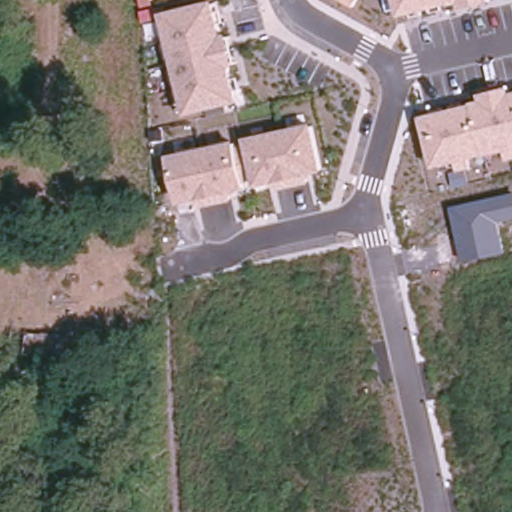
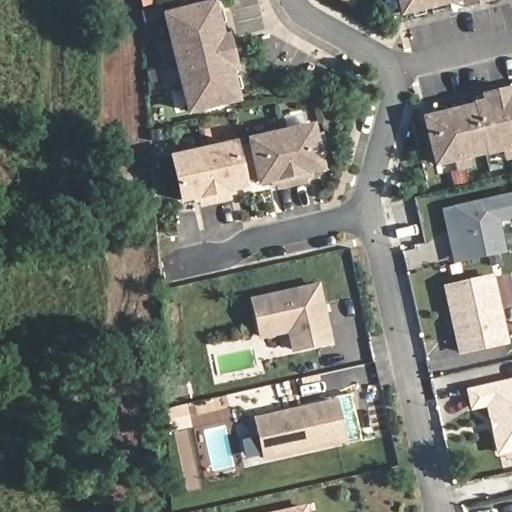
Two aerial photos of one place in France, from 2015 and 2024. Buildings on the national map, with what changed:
unchanged [(224,33),(232,31),(239,65),(231,67),(239,102),(184,116),(160,11),(207,0),(215,0),(224,33)]
unchanged [(495,1),(464,8),(463,2),(403,17),(399,0),(495,0),(495,1)]
unchanged [(509,162),(506,149),(474,157),(475,168),(467,171),(469,185),(454,188),(451,173),(459,171),(459,161),(434,167),(423,116),(482,101),(480,93),(512,85),(512,161),(509,162)]
unchanged [(328,169),(304,175),(306,183),(278,190),(277,181),(227,193),(229,199),(201,206),(199,199),(180,204),(169,152),(316,121),(328,169)]
unchanged [(499,223),(506,252),(463,262),(452,207),(512,194),(512,220),(499,223)]
new [(458,355),(442,285),(494,273),(509,343),(458,355)]
new [(260,339),(249,297),(320,281),(334,343),(292,352),(287,333),(260,339)]
new [(512,381),(512,448),(501,451),(489,402),(474,406),(469,390),(512,381)]
new [(341,401),(350,440),(270,458),(262,419),(341,401)]
new [(307,512),(284,512),(306,507),(307,512)]

